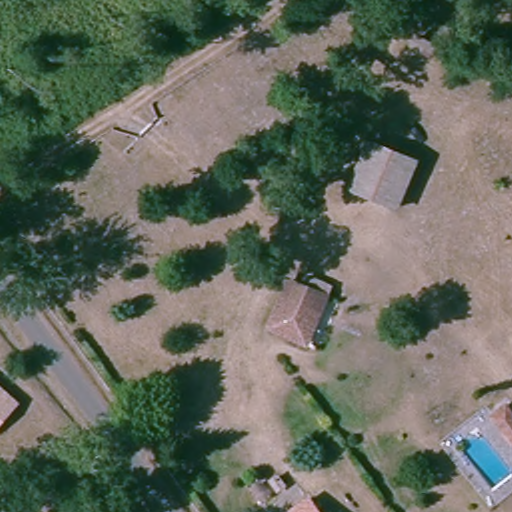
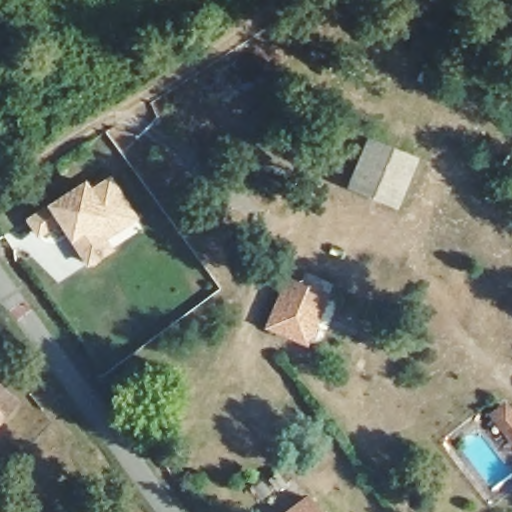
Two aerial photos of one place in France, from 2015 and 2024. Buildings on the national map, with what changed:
unchanged [(420,157),(401,204),(353,185),(372,138),(420,157)]
new [(51,201),(53,201),(87,179),(91,186),(112,174),(141,218),(109,238),(116,250),(88,268),(74,242),(71,244),(59,224),(40,238),(26,219),(51,201)]
unchanged [(309,340),(304,338),(272,325),(292,278),(305,283),(309,274),(328,282),(324,291),(329,293),(309,340)]
unchanged [(0,417),(0,392),(13,404),(0,417)]
unchanged [(319,512),(291,512),(310,499),(319,512)]
unchanged [(0,512),(0,511),(1,512),(0,512)]

